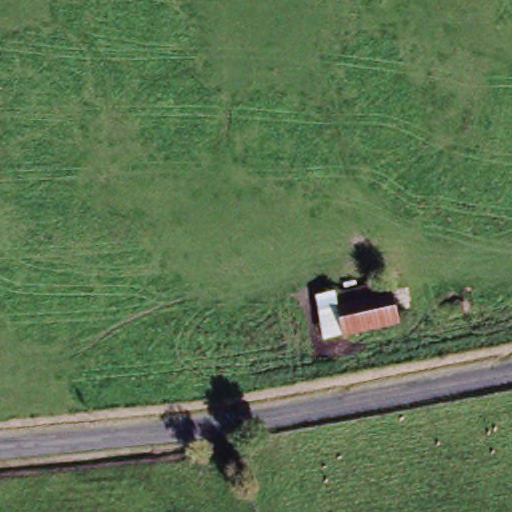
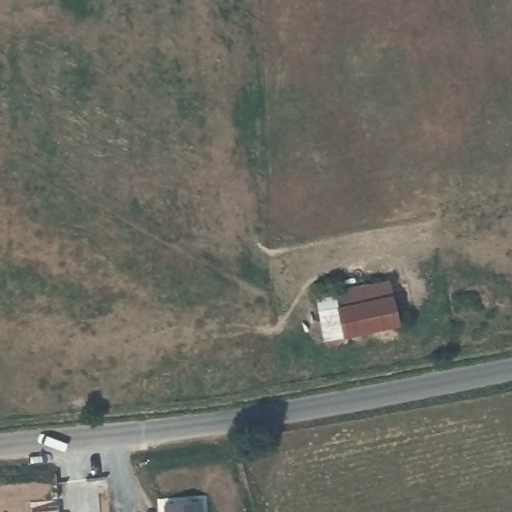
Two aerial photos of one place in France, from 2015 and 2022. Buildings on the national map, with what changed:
unchanged [(343,341),(335,287),(393,275),(398,332),(343,341)]
new [(163,512),(163,503),(203,500),(203,512),(163,512)]

